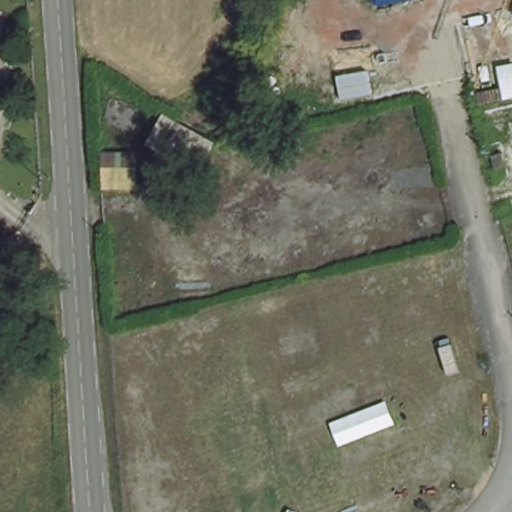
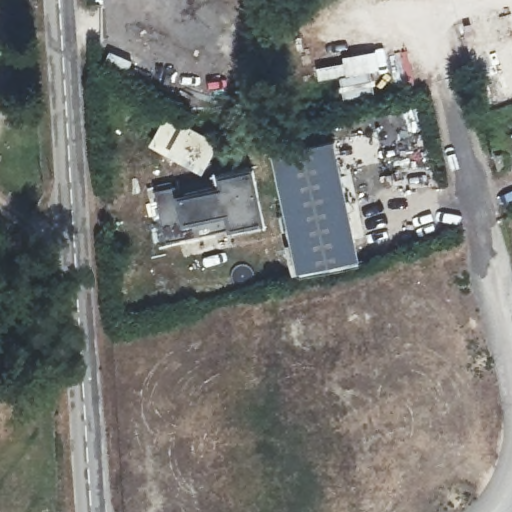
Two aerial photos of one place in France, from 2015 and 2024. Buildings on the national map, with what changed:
new [(378,71),(368,72),(373,96),(341,99),(339,76),(318,77),(319,85),(305,86),(302,60),(313,59),(315,67),(343,63),(342,56),(376,52),(378,71)]
unchanged [(198,169),(152,143),(167,116),(216,145),(198,169)]
new [(269,155),(330,141),(354,258),(294,272),(269,155)]
unchanged [(512,160),(501,162),(498,154),(511,150),(512,155),(512,160)]
demolished [(140,152),(140,189),(104,191),(103,154),(140,152)]
new [(163,242),(152,190),(174,186),(175,196),(216,189),(215,175),(246,170),(258,224),(163,242)]

